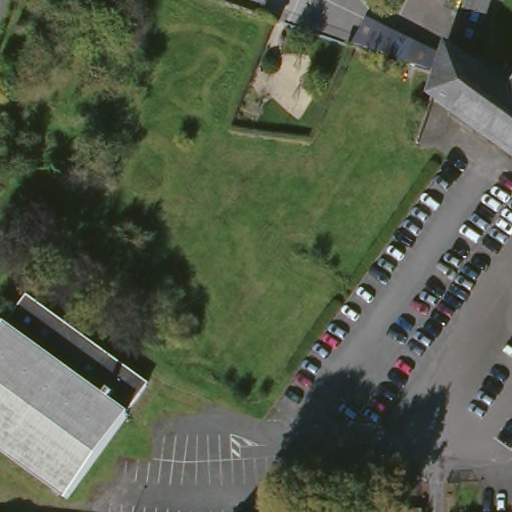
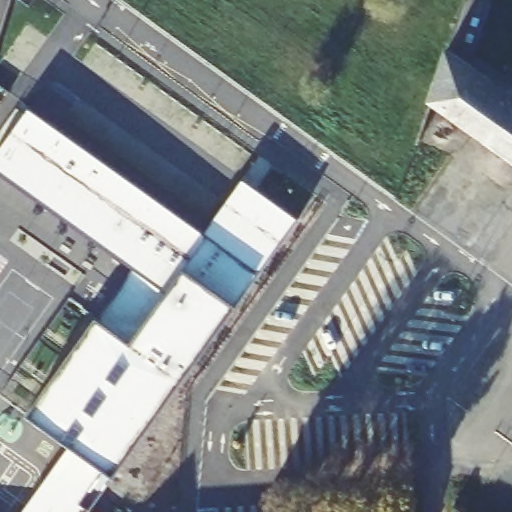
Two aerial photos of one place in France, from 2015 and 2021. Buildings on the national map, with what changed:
unchanged [(264,0),(263,4),(253,0),(264,0)]
unchanged [(452,112),(437,101),(445,77),(450,60),(453,50),(470,0),(487,7),(472,52),(510,79),(512,77),(512,155),(473,127),(452,112)]
unchanged [(445,77),(431,72),(360,48),(373,21),(450,60),(445,77)]
new [(201,232),(245,176),(298,216),(84,512),(21,512),(70,446),(33,413),(135,267),(0,165),(0,148),(30,106),(201,232)]
demolished [(5,328),(7,330),(28,301),(149,388),(129,417),(130,418),(70,502),(0,451),(0,334),(5,328)]

